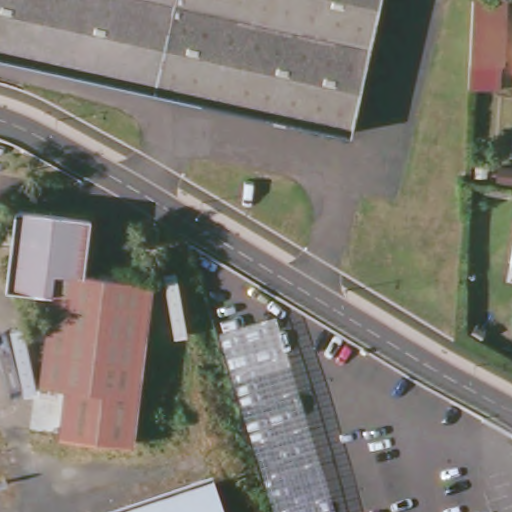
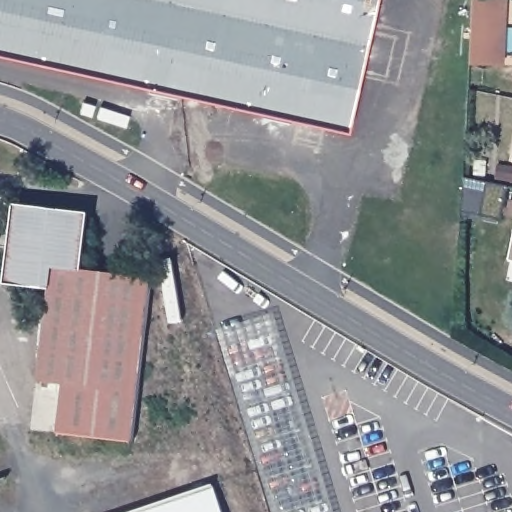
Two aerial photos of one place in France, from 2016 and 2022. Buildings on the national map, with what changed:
unchanged [(0,51),(0,0),(380,0),(355,126),(0,51)]
unchanged [(484,0),(507,4),(503,76),(471,75),(474,0),(484,0)]
unchanged [(87,217),(81,269),(154,278),(135,442),(60,434),(65,384),(40,382),(51,287),(9,282),(18,208),(87,217)]
unchanged [(215,485),(224,512),(136,512),(215,485)]

